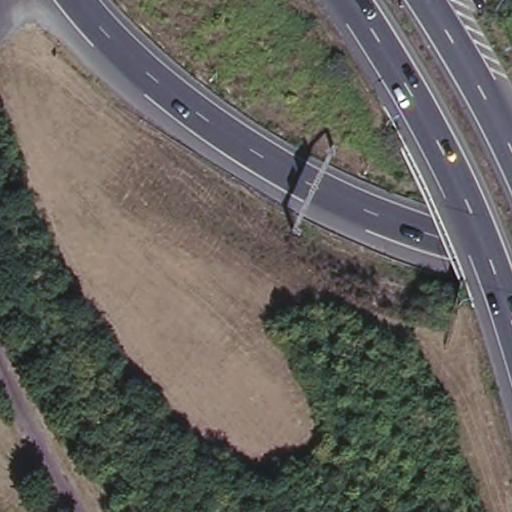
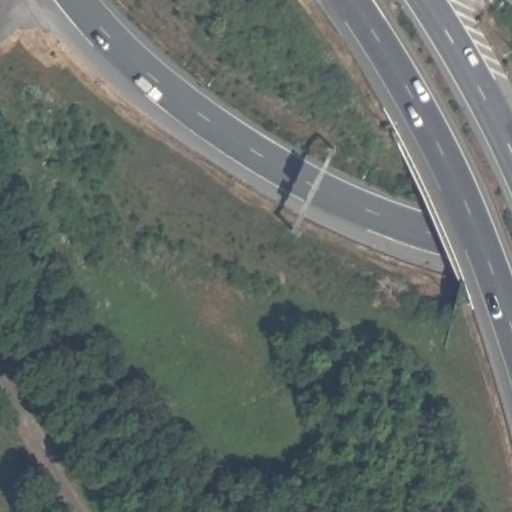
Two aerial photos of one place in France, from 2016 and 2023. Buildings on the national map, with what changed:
[]

